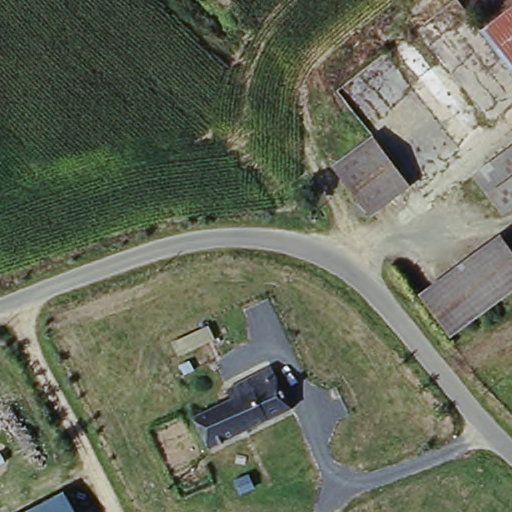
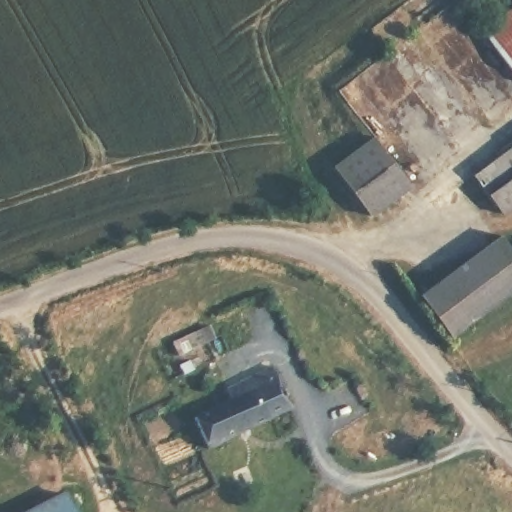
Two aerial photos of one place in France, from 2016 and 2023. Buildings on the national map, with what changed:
unchanged [(512,8),(512,68),(482,33),(512,8)]
unchanged [(336,163),(373,134),(408,180),(370,210),(336,163)]
unchanged [(512,145),(512,204),(502,211),(472,174),(512,145)]
unchanged [(512,251),(512,289),(447,334),(420,294),(500,235),(512,251)]
unchanged [(235,395),(228,383),(270,364),(291,408),(210,446),(195,413),(235,395)]
unchanged [(71,487),(83,512),(54,512),(48,502),(71,487)]
unchanged [(54,512),(23,512),(47,499),(54,512)]

